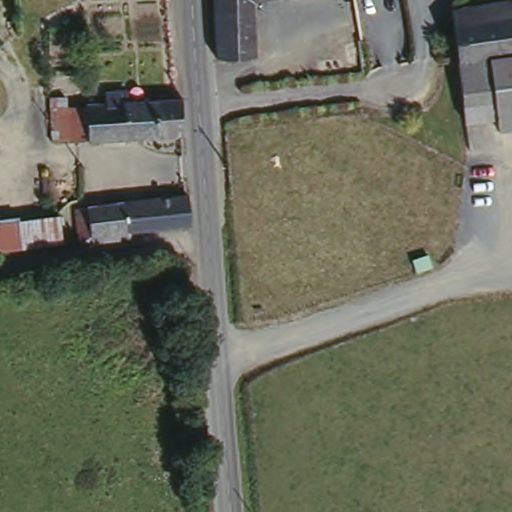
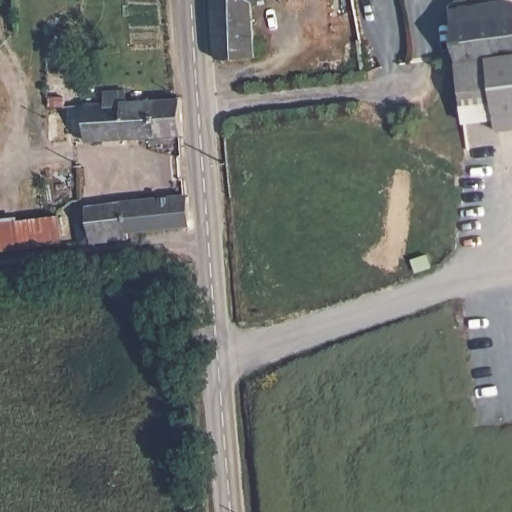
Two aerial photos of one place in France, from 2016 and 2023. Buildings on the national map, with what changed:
unchanged [(214,13),(213,0),(255,0),(255,54),(217,55),(214,13)]
unchanged [(450,22),(512,14),(512,29),(452,37),(450,22)]
unchanged [(452,37),(512,29),(512,68),(459,73),(452,37)]
unchanged [(497,130),(495,115),(464,119),(459,73),(512,68),(512,128),(497,130)]
unchanged [(45,108),(63,106),(102,104),(101,93),(125,91),(126,103),(171,100),(180,100),(183,139),(84,143),(65,145),(47,145),(45,108)]
unchanged [(85,204),(102,203),(201,197),(204,225),(127,229),(127,235),(87,235),(85,204)]
unchanged [(61,242),(0,250),(0,223),(57,215),(61,242)]

